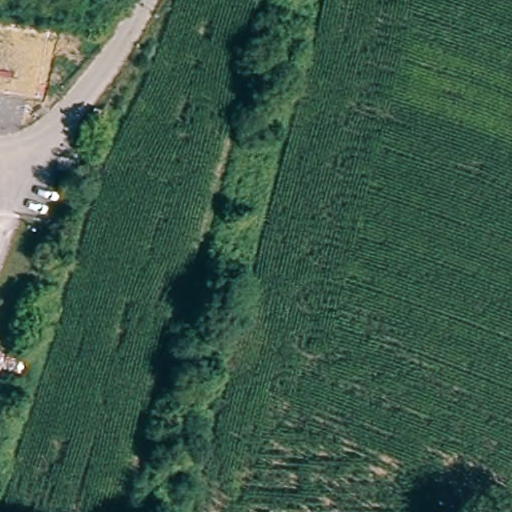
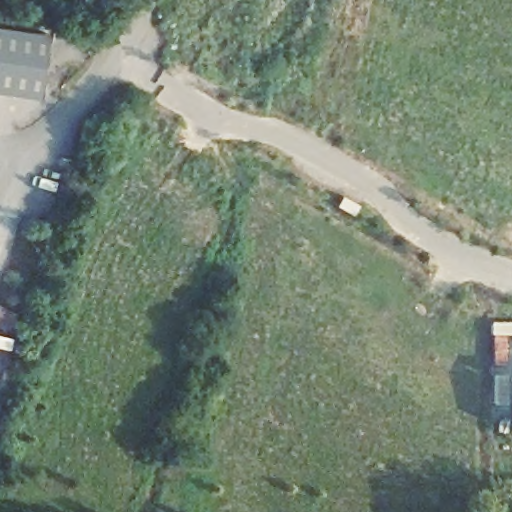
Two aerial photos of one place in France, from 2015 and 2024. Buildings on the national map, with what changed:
new [(46,34),(36,100),(0,94),(0,26),(46,34)]
new [(512,336),(506,336),(507,364),(491,365),(490,322),(512,322),(512,336)]

